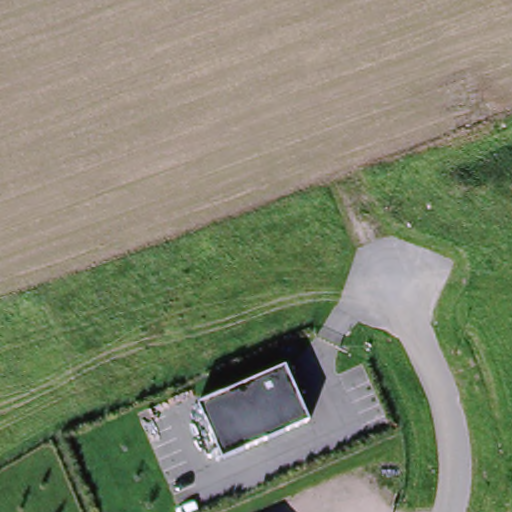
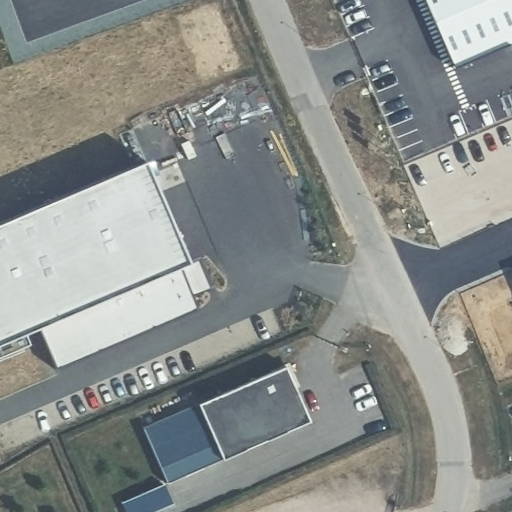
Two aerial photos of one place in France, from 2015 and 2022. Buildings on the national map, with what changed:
new [(422,0),(512,0),(512,47),(454,72),(422,0)]
new [(192,261),(199,259),(212,288),(192,296),(197,309),(57,369),(42,326),(26,333),(30,344),(0,357),(0,222),(145,160),(192,261)]
unchanged [(285,368),(309,421),(222,460),(198,406),(285,368)]

